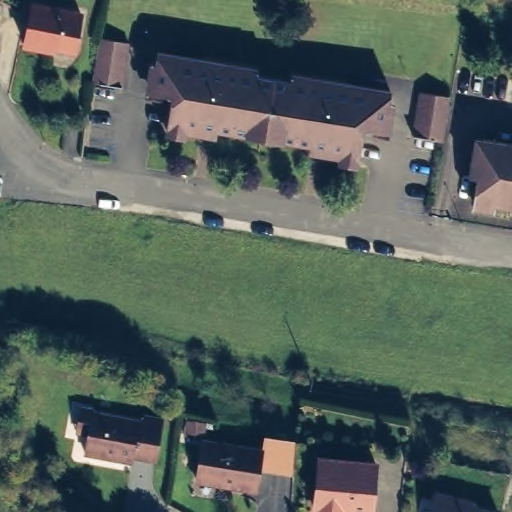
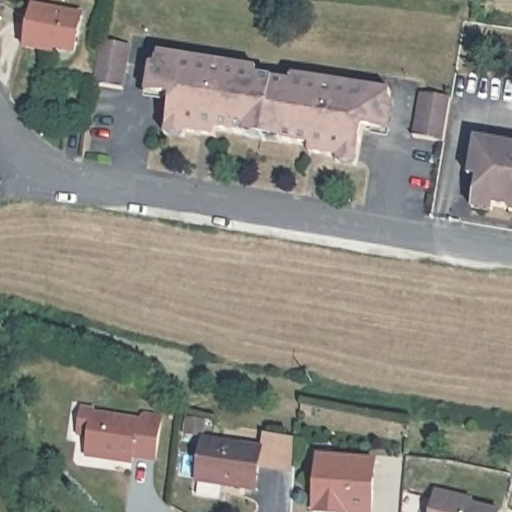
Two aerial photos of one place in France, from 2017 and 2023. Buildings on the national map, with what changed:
unchanged [(73,55),(48,51),(46,54),(26,50),(33,9),(79,17),(73,55)]
unchanged [(131,44),(123,88),(92,82),(98,55),(103,39),(131,44)]
unchanged [(286,137),(252,131),(222,127),(221,134),(206,131),(174,126),(179,95),(158,91),(164,52),(263,67),(262,75),(298,81),(300,74),(398,90),(390,129),(370,125),(363,158),(329,152),(315,150),(316,142),(286,137)]
unchanged [(448,144),(421,137),(429,94),(456,99),(448,144)]
unchanged [(489,140),(512,144),(512,209),(480,201),(489,140)]
unchanged [(151,416),(168,418),(162,460),(140,456),(139,462),(127,460),(127,458),(114,456),(114,458),(94,454),(97,433),(87,432),(89,408),(100,410),(100,415),(151,421),(151,416)]
unchanged [(201,481),(208,441),(265,451),(257,491),(201,481)]
unchanged [(374,512),(353,512),(354,510),(317,508),(321,460),(379,465),(374,512)]
unchanged [(439,498),(472,504),(471,509),(484,512),(436,512),(439,498)]

